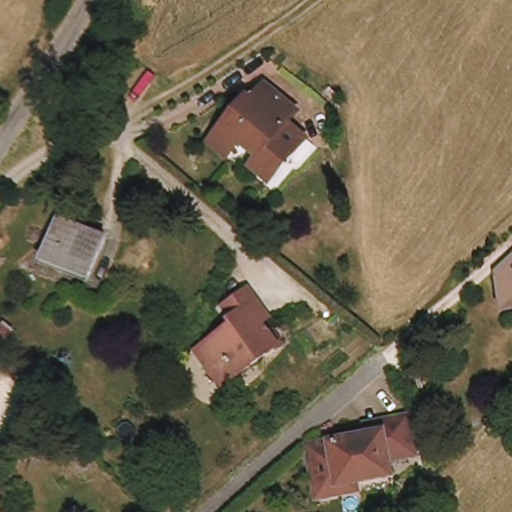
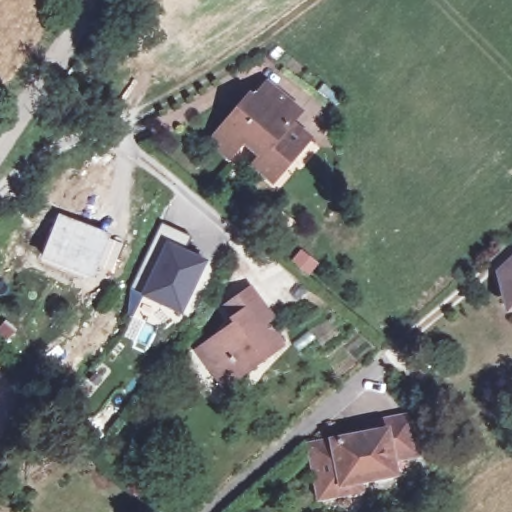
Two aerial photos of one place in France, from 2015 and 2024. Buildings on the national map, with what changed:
unchanged [(261,156),(251,149),(246,154),(239,147),(226,163),(207,147),(233,115),(240,107),(245,102),(250,106),(264,90),(296,116),(286,128),(306,144),(290,164),(269,189),(249,172),(254,165),(261,156)]
unchanged [(94,279),(44,256),(59,224),(109,248),(94,279)]
new [(194,240),(188,254),(207,264),(181,316),(140,295),(130,291),(162,224),(194,240)]
unchanged [(498,277),(512,264),(512,308),(502,298),(498,277)]
unchanged [(220,384),(202,357),(238,332),(234,328),(238,325),(230,314),(254,297),(262,308),(275,325),(268,330),(284,354),(245,381),(227,394),(220,384)]
unchanged [(322,495),(319,479),(313,443),(371,432),(370,422),(387,419),(414,414),(421,453),(394,458),(397,474),(364,480),(365,488),(322,495)]

